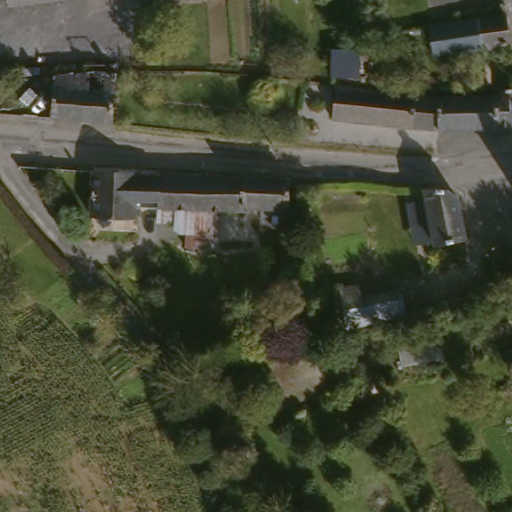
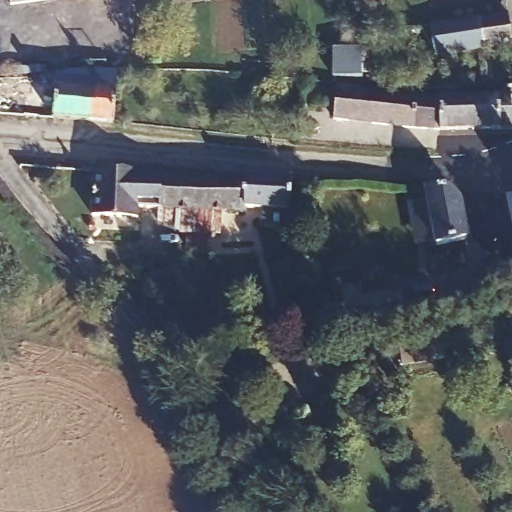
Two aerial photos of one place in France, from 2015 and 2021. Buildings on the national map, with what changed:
unchanged [(7,18),(4,0),(118,0),(7,18)]
unchanged [(503,17),(512,49),(435,66),(426,42),(423,34),(435,31),(503,17)]
unchanged [(117,79),(110,130),(51,124),(54,78),(117,79)]
unchanged [(346,93),(440,103),(506,99),(505,94),(512,93),(512,130),(511,130),(450,136),(320,126),(322,96),(345,99),(346,93)]
unchanged [(260,221),(260,207),(218,207),(217,229),(190,227),(192,209),(184,208),(182,227),(159,224),(160,210),(140,208),(140,220),(92,218),(92,171),(160,174),(288,178),(288,181),(288,206),(288,222),(260,221)]
unchanged [(437,190),(443,191),(448,191),(451,193),(461,238),(433,243),(420,191),(437,190)]
unchanged [(404,317),(344,332),(337,302),(335,291),(355,286),(358,298),(399,289),(404,317)]

